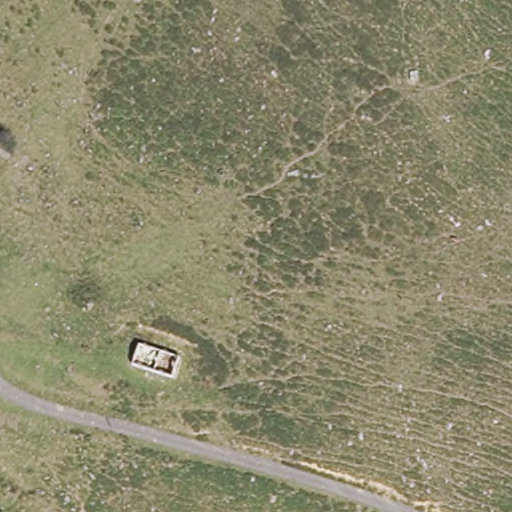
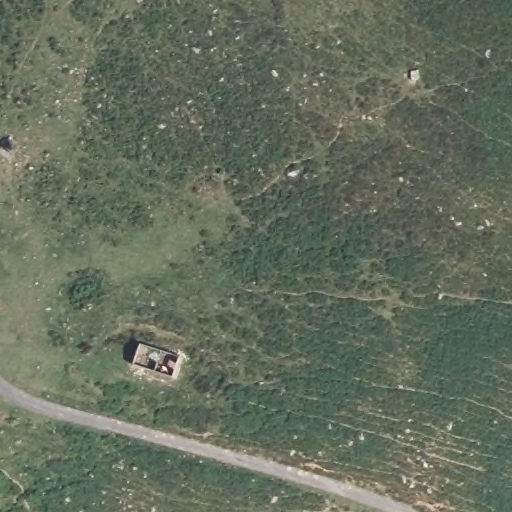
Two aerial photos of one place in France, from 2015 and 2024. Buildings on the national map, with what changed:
unchanged [(136,349),(182,362),(174,387),(131,369),(136,349)]

